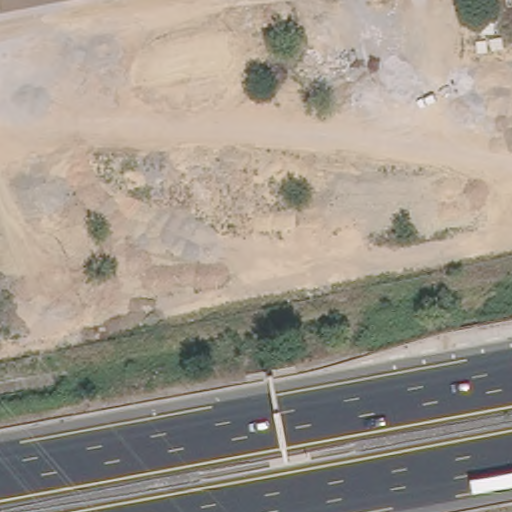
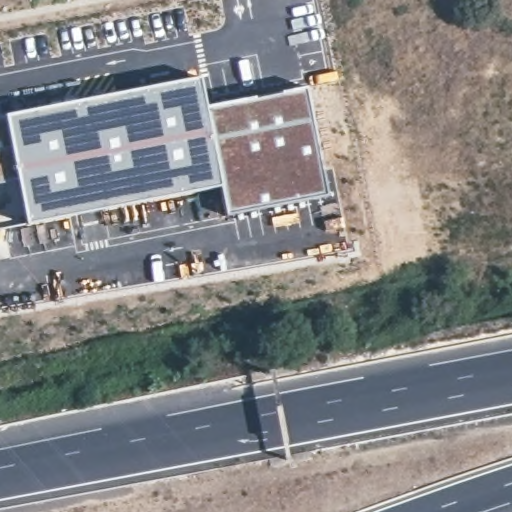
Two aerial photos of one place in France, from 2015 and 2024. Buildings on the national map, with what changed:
new [(201,76),(207,105),(221,187),(26,225),(17,179),(4,114),(201,76)]
new [(270,94),(307,86),(327,196),(227,216),(221,187),(207,105),(270,94)]
new [(4,114),(17,179),(0,184),(0,115),(4,114)]

